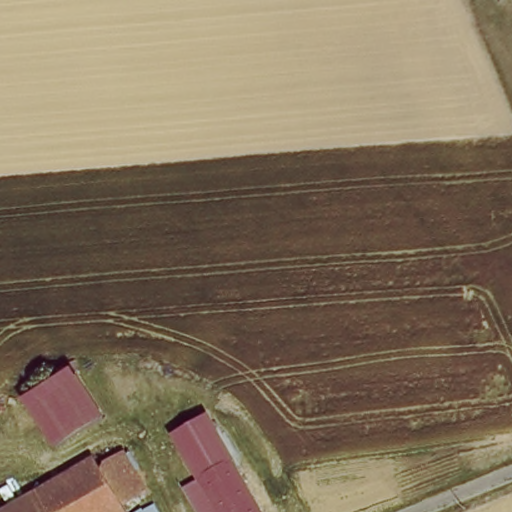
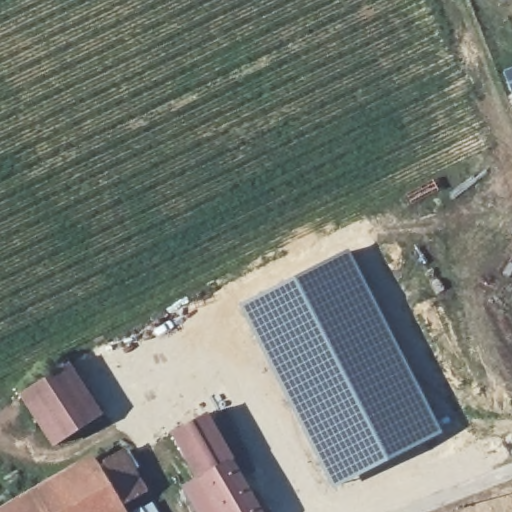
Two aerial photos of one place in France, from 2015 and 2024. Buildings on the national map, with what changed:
demolished [(408,30),(512,179),(512,258),(368,56),(408,30)]
new [(349,249),(442,433),(358,476),(331,489),(237,304),(349,249)]
unchanged [(52,452),(19,400),(71,365),(103,414),(52,452)]
unchanged [(261,512),(214,512),(169,435),(207,414),(261,512)]
unchanged [(124,456),(145,496),(120,509),(98,468),(124,456)]
unchanged [(121,512),(88,512),(69,477),(95,462),(98,468),(120,509),(121,512)]
unchanged [(49,488),(50,488),(69,477),(88,512),(6,512),(48,489),(49,488)]

